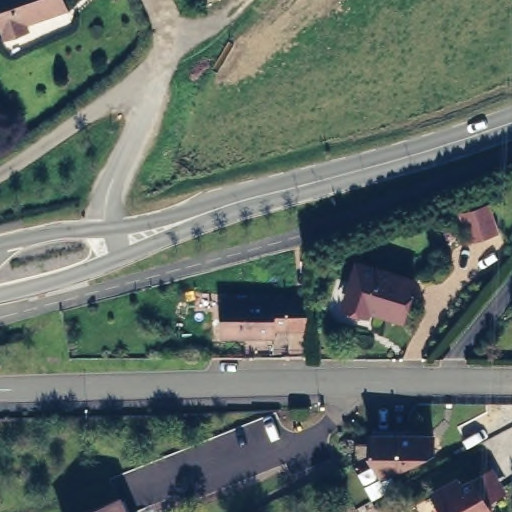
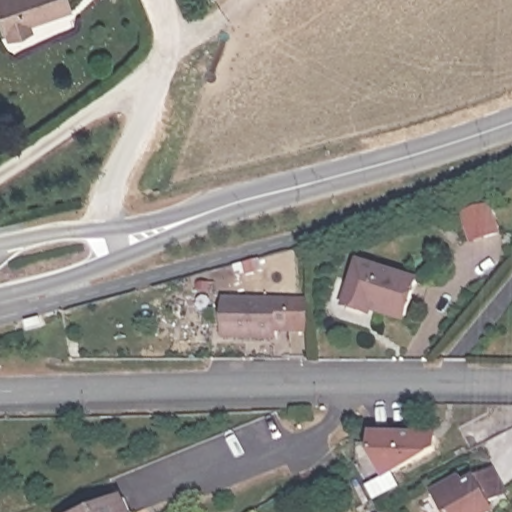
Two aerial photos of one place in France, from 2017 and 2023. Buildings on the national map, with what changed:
unchanged [(60,8),(21,22),(22,29),(3,36),(0,28),(0,0),(57,0),(60,8)]
unchanged [(465,224),(460,210),(489,200),(497,229),(484,234),(469,238),(465,224)]
unchanged [(415,286),(402,325),(345,307),(358,268),(415,286)]
unchanged [(305,296),(304,326),(275,325),(275,332),(222,331),(223,295),(305,296)]
unchanged [(432,437),(432,451),(381,477),(370,455),(370,452),(370,436),(399,436),(432,437)]
unchanged [(453,475),(457,482),(478,470),(492,493),(477,500),(482,508),(475,512),(440,512),(428,489),(453,475)]
unchanged [(118,512),(90,512),(114,501),(118,512)]

